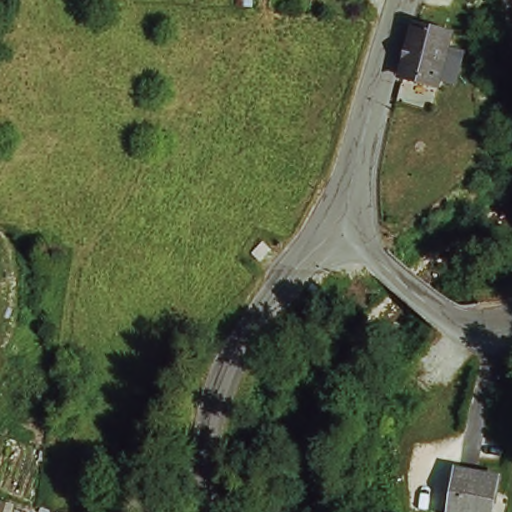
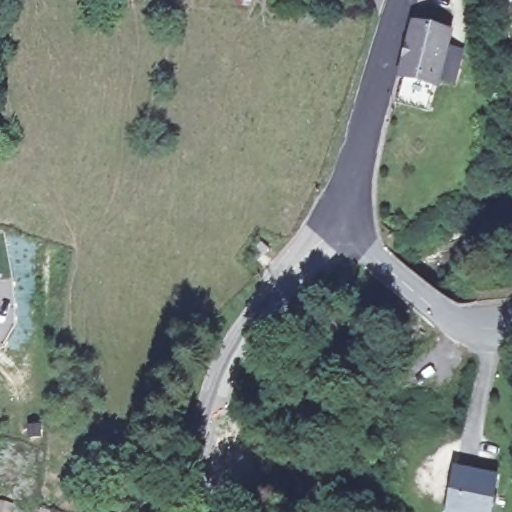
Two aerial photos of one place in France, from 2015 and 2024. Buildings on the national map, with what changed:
unchanged [(412,30),(448,38),(437,86),(402,79),(412,30)]
unchanged [(492,512),(454,512),(458,467),(495,470),(492,512)]

